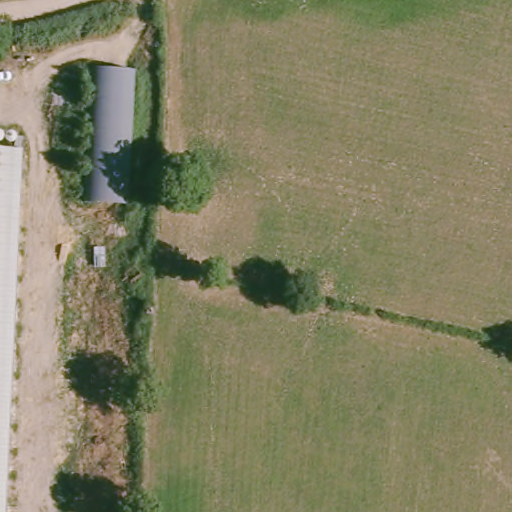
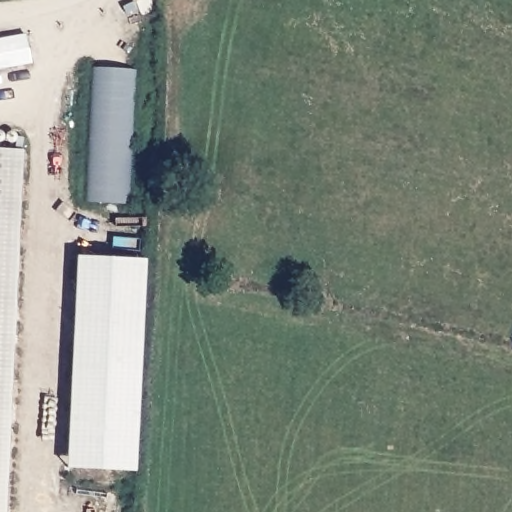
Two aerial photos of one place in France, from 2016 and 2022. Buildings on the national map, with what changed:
new [(29,62),(24,62),(0,68),(0,40),(23,35),(29,62)]
unchanged [(127,201),(85,199),(91,65),(134,67),(127,201)]
unchanged [(0,151),(20,152),(25,153),(7,512),(0,512),(0,151)]
new [(67,468),(77,257),(146,260),(135,473),(67,468)]

